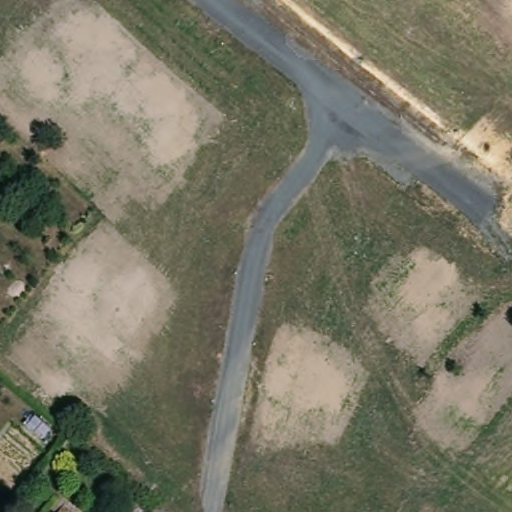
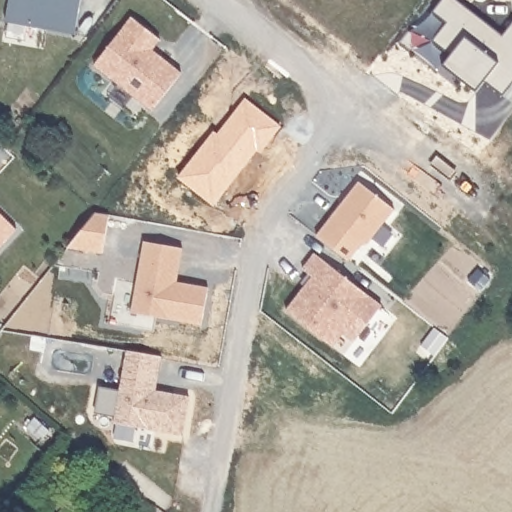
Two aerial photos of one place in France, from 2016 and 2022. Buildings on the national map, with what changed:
new [(9,0),(81,0),(74,35),(5,23),(9,0)]
new [(512,26),(512,84),(502,96),(484,83),(475,93),(443,65),(450,58),(431,44),(447,24),(433,13),(445,0),(454,0),(502,38),(512,26)]
new [(93,65),(131,16),(160,40),(152,49),(182,74),(152,113),(93,65)]
new [(396,210),(369,246),(361,245),(349,262),(317,237),(359,183),(396,210)]
new [(94,213),(109,216),(103,254),(68,249),(94,213)]
new [(17,229),(0,248),(0,214),(17,229)]
new [(182,249),(176,283),(207,289),(201,325),(132,314),(143,242),(182,249)]
new [(382,306),(354,343),(342,334),(332,347),(285,310),(311,278),(302,271),(315,254),(382,306)]
new [(434,329),(447,339),(434,357),(421,347),(434,329)]
new [(160,358),(157,374),(155,374),(152,391),(187,398),(181,437),(113,425),(115,416),(96,413),(100,389),(119,392),(127,352),(160,358)]
unchanged [(49,430),(41,439),(26,429),(33,419),(49,430)]
unchanged [(163,511),(165,512),(163,512),(163,511)]

